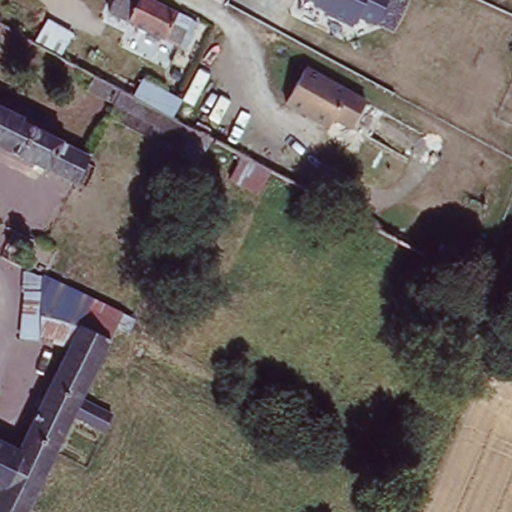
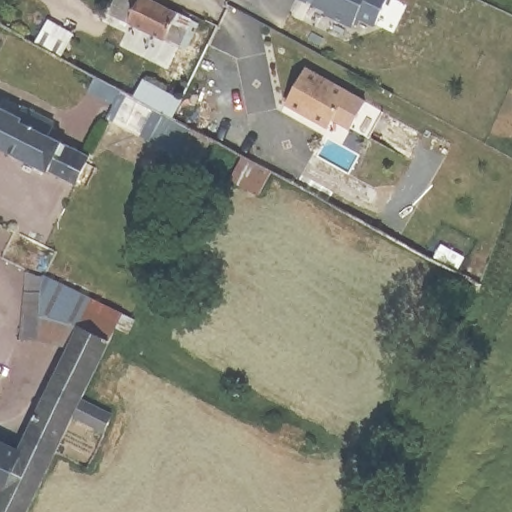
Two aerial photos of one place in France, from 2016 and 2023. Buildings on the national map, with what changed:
unchanged [(135,21),(118,12),(124,0),(146,0),(156,5),(181,17),(171,38),(135,21)]
unchanged [(359,15),(353,24),(300,0),(383,0),(372,22),(359,15)]
unchanged [(367,100),(350,129),(335,120),(328,129),(284,104),(306,65),(367,100)]
unchanged [(181,99),(172,117),(210,137),(197,162),(108,115),(113,105),(87,90),(94,75),(131,96),(142,76),(181,99)]
unchanged [(59,126),(53,139),(96,159),(81,189),(0,153),(0,112),(23,122),(28,112),(59,126)]
unchanged [(278,176),(266,199),(236,183),(248,160),(278,176)]
unchanged [(23,303),(28,263),(45,271),(46,269),(48,270),(136,315),(129,328),(120,324),(111,342),(85,394),(116,410),(109,425),(77,409),(25,512),(1,512),(0,511),(0,492),(6,480),(0,477),(0,431),(26,441),(79,336),(21,325),(23,303)]

